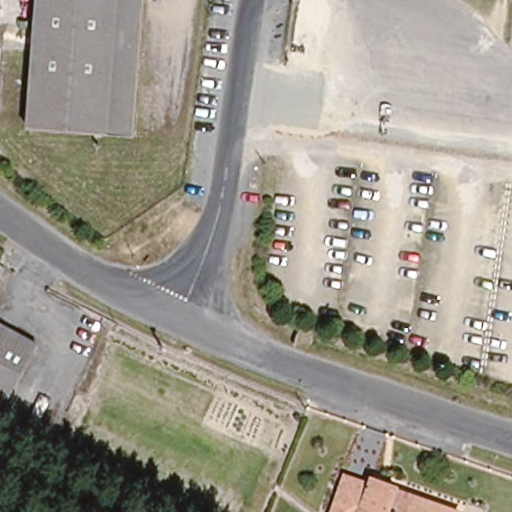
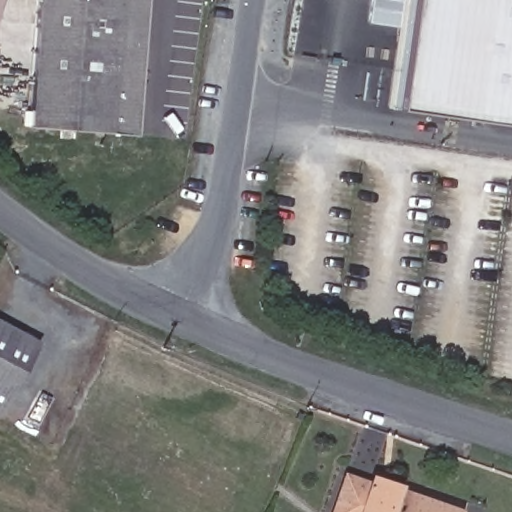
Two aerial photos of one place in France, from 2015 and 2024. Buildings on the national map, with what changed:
unchanged [(30,131),(38,0),(141,0),(135,140),(30,131)]
new [(400,27),(369,24),(371,0),(403,0),(400,27)]
new [(512,127),(394,110),(411,0),(512,0),(512,127)]
unchanged [(35,344),(14,391),(1,421),(0,421),(0,329),(35,344)]
unchanged [(370,476),(400,485),(462,510),(461,512),(331,512),(347,470),(370,476)]

